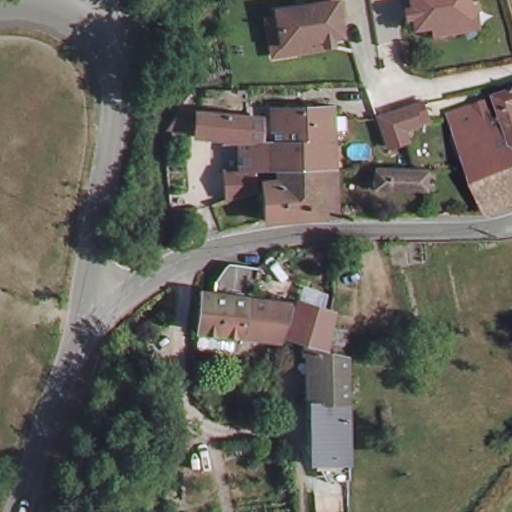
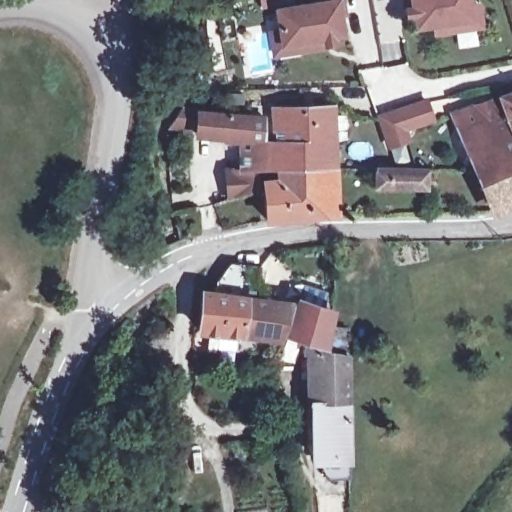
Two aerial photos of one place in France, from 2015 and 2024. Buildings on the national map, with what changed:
unchanged [(275,31),(272,9),(331,0),(338,0),(341,17),(336,18),(339,36),(327,37),(329,44),(322,45),(322,47),(295,51),(269,55),(266,33),(275,31)]
unchanged [(460,31),(440,34),(439,25),(420,28),(418,16),(412,17),(411,9),(410,0),(474,0),(475,7),(483,6),(486,27),(460,31)]
unchanged [(504,102),(512,99),(512,126),(504,103),(504,102)]
unchanged [(404,128),(407,140),(389,146),(380,117),(398,111),(426,101),(432,119),(404,128)]
unchanged [(461,118),(504,103),(512,126),(512,167),(484,176),(461,118)]
unchanged [(226,205),(225,205),(219,206),(220,174),(235,174),(236,144),(217,145),(218,138),(192,136),(192,133),(185,132),(175,129),(179,119),(182,115),(187,115),(195,116),(222,118),(260,120),(260,121),(259,140),(259,142),(260,143),(260,148),(269,148),(270,147),(282,147),(282,133),(270,134),(270,113),(285,113),(312,112),(322,112),(327,112),(328,145),(328,146),(329,171),(330,220),(299,222),(292,223),(261,226),(257,188),(270,185),(270,175),(265,175),(252,176),(252,197),(240,201),(226,205)]
unchanged [(500,217),(455,221),(430,222),(432,193),(432,175),(484,176),(512,167),(512,212),(500,217)]
unchanged [(432,193),(379,193),(380,173),(422,175),(432,175),(432,193)]
unchanged [(213,292),(217,266),(240,265),(258,268),(253,297),(213,292)]
unchanged [(217,350),(220,334),(197,332),(201,293),(246,300),(282,305),(275,340),(273,340),(272,345),(259,343),(259,338),(240,336),(238,336),(237,353),(217,350)]
unchanged [(343,353),(324,349),(324,351),(335,354),(349,357),(349,400),(349,402),(349,458),(349,459),(314,459),(312,401),(312,354),(301,353),(305,341),(298,340),(285,336),(296,307),(297,303),(319,311),(330,314),(329,326),(347,329),(343,353)]
unchanged [(170,508),(176,512),(168,512),(170,508)]

